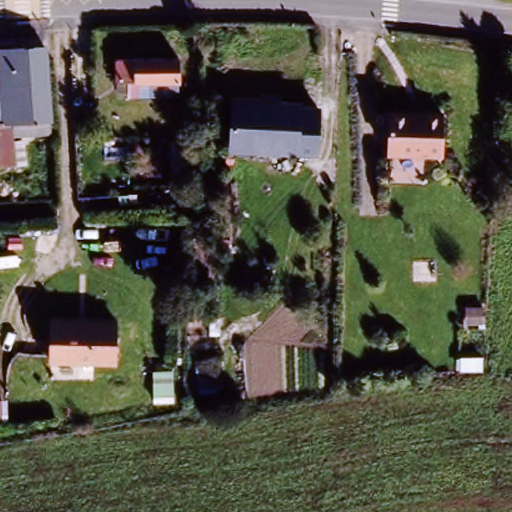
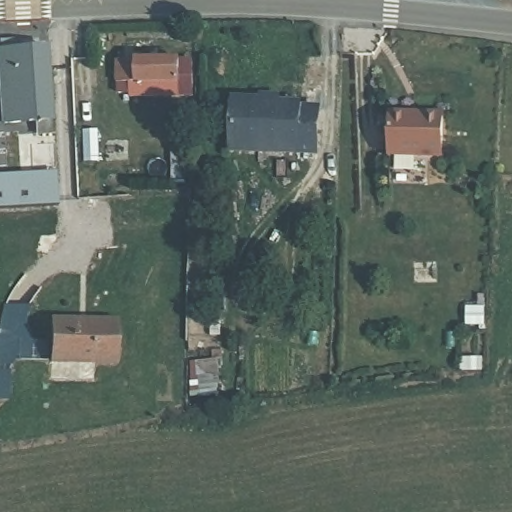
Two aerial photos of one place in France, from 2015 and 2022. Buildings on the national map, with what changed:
unchanged [(35,131),(33,118),(19,120),(11,50),(42,46),(48,116),(49,129),(35,131)]
unchanged [(0,104),(0,51),(11,50),(19,120),(1,120),(0,104)]
unchanged [(115,84),(116,61),(177,62),(193,62),(193,98),(176,96),(136,96),(115,96),(115,84)]
unchanged [(231,150),(233,97),(304,103),(304,108),(324,108),(319,151),(231,150)]
unchanged [(393,109),(448,111),(446,153),(392,151),(393,109)]
unchanged [(11,161),(0,162),(0,124),(8,124),(11,161)]
new [(64,205),(0,210),(0,182),(62,177),(64,205)]
unchanged [(51,363),(53,317),(121,321),(119,365),(51,363)]

